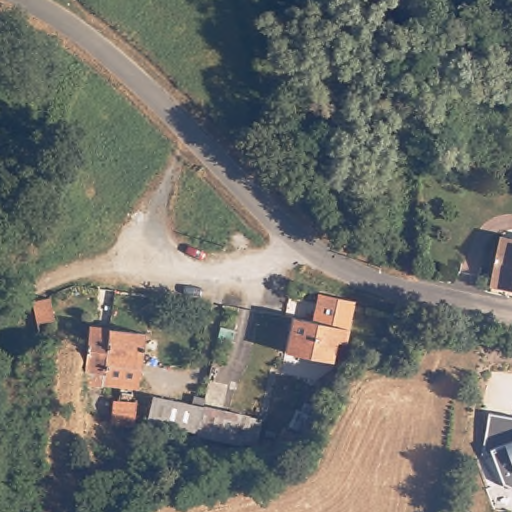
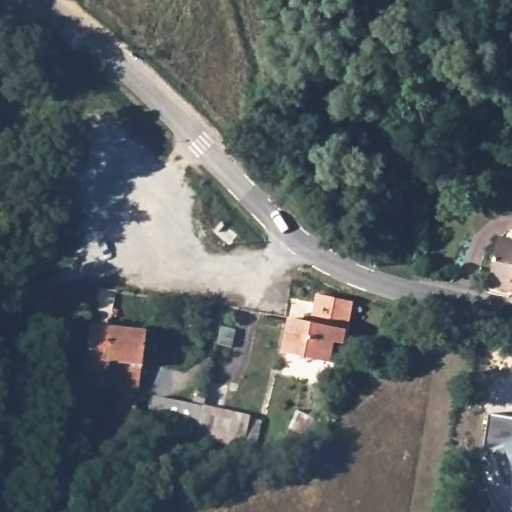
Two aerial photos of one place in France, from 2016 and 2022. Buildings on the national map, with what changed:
unchanged [(512,244),(512,283),(496,278),(507,242),(512,244)]
unchanged [(290,317),(311,322),(317,297),(353,305),(344,347),(333,344),(328,363),(282,352),(290,317)]
unchanged [(37,334),(35,330),(29,319),(27,314),(42,307),(45,312),(52,327),(37,334)]
unchanged [(91,327),(113,330),(107,375),(85,373),(91,327)]
unchanged [(116,425),(118,403),(120,386),(106,385),(107,375),(113,330),(146,333),(139,389),(138,406),(136,427),(116,425)]
unchanged [(149,420),(154,393),(205,403),(201,429),(149,420)]
unchanged [(201,429),(205,403),(251,412),(246,442),(200,433),(201,429)]
unchanged [(491,447),(485,438),(489,415),(512,418),(512,488),(507,485),(491,447)]

